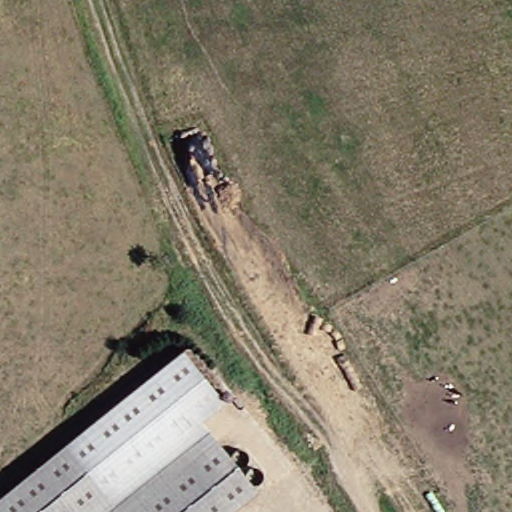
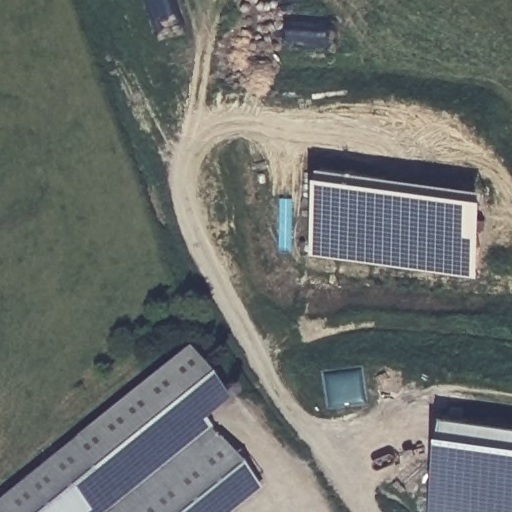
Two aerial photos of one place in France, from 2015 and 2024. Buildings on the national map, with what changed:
new [(482,199),(471,283),(303,262),(314,176),(482,199)]
unchanged [(212,410),(191,430),(241,495),(220,512),(0,512),(0,490),(169,358),(212,410)]
new [(512,434),(512,512),(429,512),(438,424),(512,434)]

